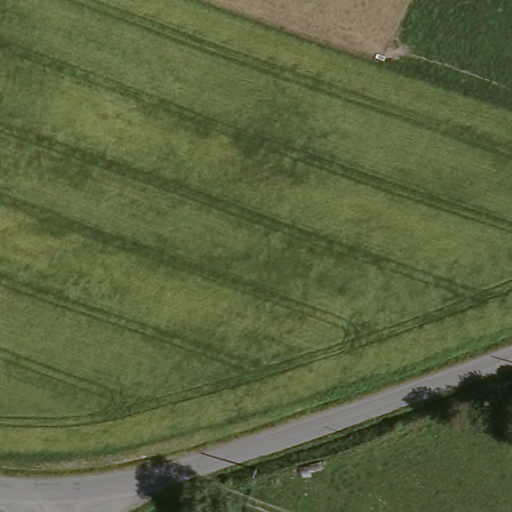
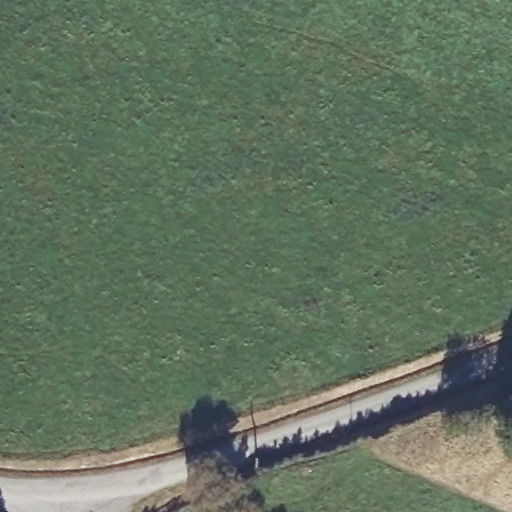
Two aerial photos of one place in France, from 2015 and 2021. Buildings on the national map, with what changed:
[]

